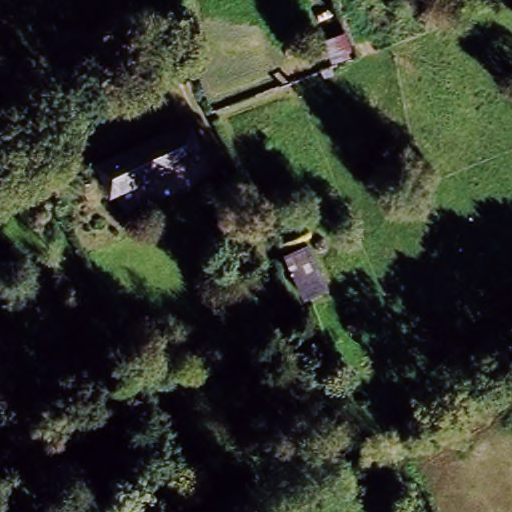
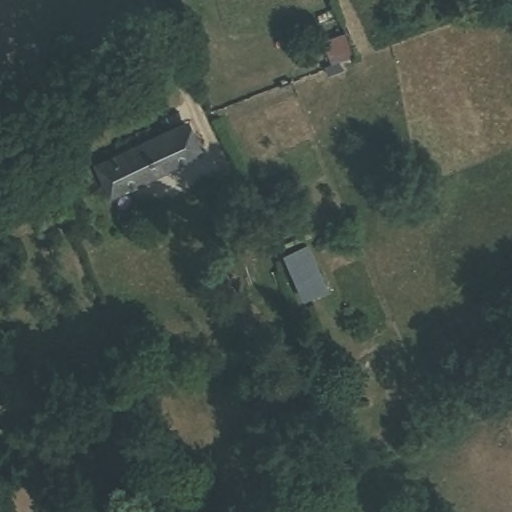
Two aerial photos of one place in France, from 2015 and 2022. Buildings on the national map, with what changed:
unchanged [(108,201),(94,171),(222,113),(235,137),(108,201)]
unchanged [(308,296),(293,264),(302,260),(296,248),(308,244),(327,287),(308,296)]

